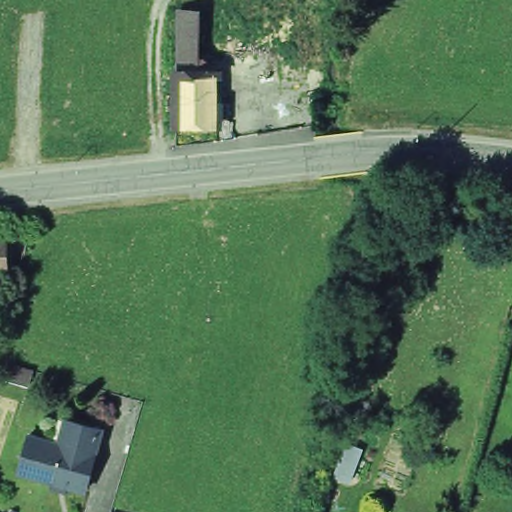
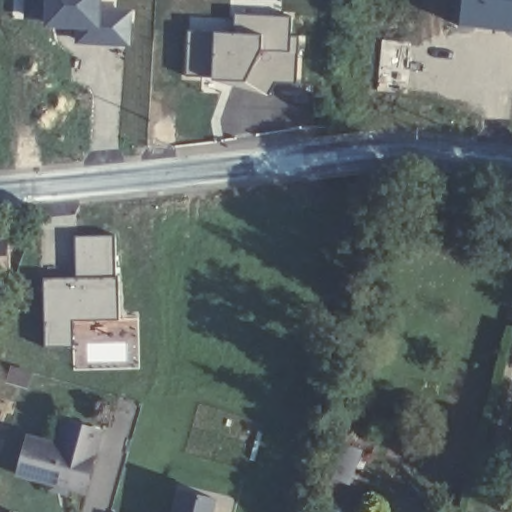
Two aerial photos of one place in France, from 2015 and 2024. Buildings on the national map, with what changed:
new [(40,29),(40,21),(21,20),(22,0),(99,0),(99,10),(131,11),(130,49),(73,45),(73,31),(40,29)]
demolished [(180,10),(283,10),(283,0),(308,1),(306,78),(281,76),(282,55),(200,52),(200,70),(179,69),(180,10)]
new [(459,27),(462,0),(512,0),(512,33),(459,27)]
new [(188,27),(230,30),(233,11),(292,15),(291,33),(300,34),(298,83),(273,81),(266,95),(245,85),(185,74),(188,27)]
new [(411,98),(375,95),(379,40),(414,42),(411,98)]
demolished [(214,127),(174,127),(175,109),(168,109),(168,100),(175,100),(176,69),(179,69),(200,70),(216,70),(216,127),(214,127)]
unchanged [(0,234),(6,234),(7,275),(0,275),(0,234)]
new [(115,234),(117,274),(75,276),(75,235),(115,234)]
new [(75,276),(117,274),(120,318),(71,320),(72,345),(43,345),(42,277),(75,276)]
unchanged [(22,430),(59,440),(65,417),(96,425),(81,485),(13,467),(22,430)]
new [(212,512),(176,512),(180,493),(213,503),(212,512)]

